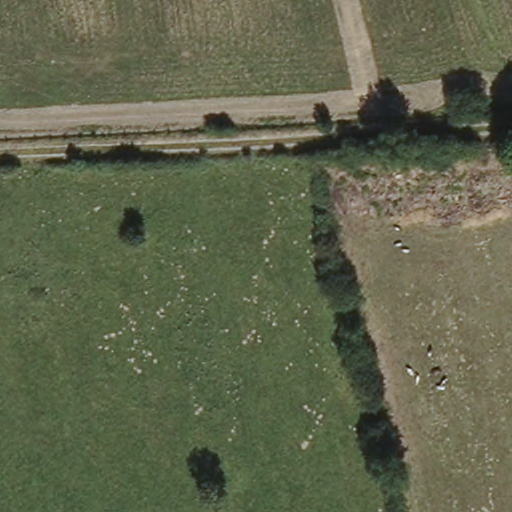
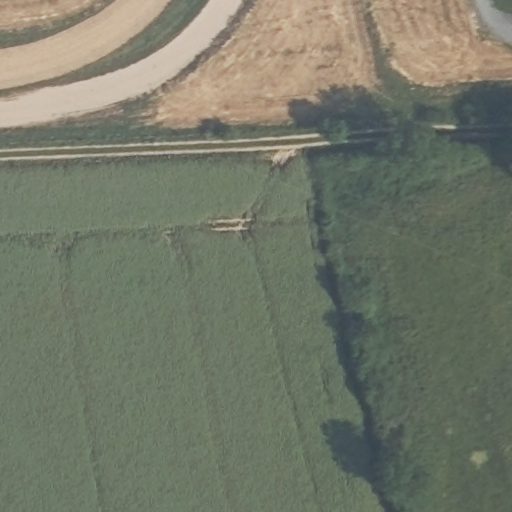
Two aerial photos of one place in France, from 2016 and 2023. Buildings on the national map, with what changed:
[]

